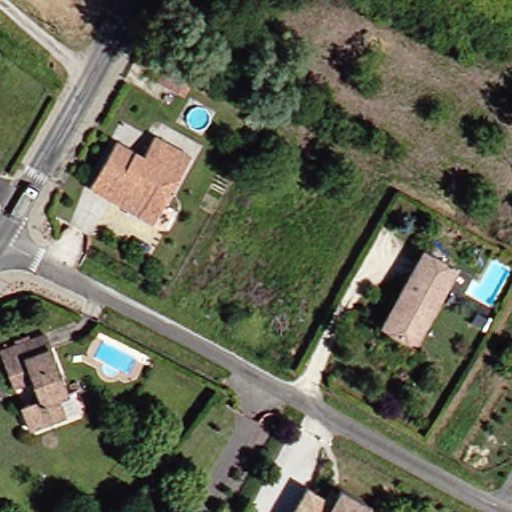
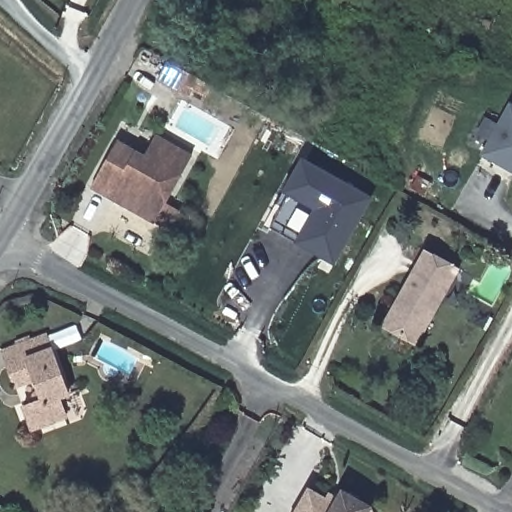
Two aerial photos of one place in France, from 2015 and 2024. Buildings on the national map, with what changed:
new [(134,62),(159,76),(149,94),(124,80),(134,62)]
new [(512,170),(483,155),(510,107),(512,107),(512,170)]
unchanged [(189,156),(151,221),(88,185),(113,140),(140,156),(152,136),(189,156)]
new [(301,157),(371,198),(332,263),(262,222),(301,157)]
unchanged [(415,347),(375,326),(417,250),(457,271),(415,347)]
unchanged [(55,400),(63,420),(29,433),(20,411),(30,407),(29,403),(30,401),(31,398),(34,395),(31,382),(12,390),(4,369),(0,358),(0,354),(41,337),(47,352),(65,396),(55,400)]
unchanged [(372,503),(374,512),(291,512),(308,484),(326,494),(329,489),(337,494),(342,486),(372,503)]

